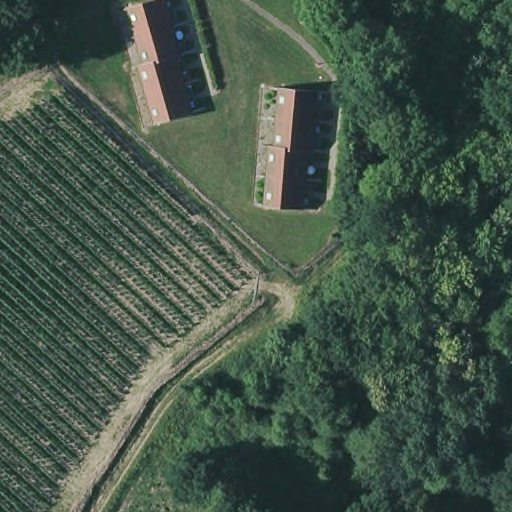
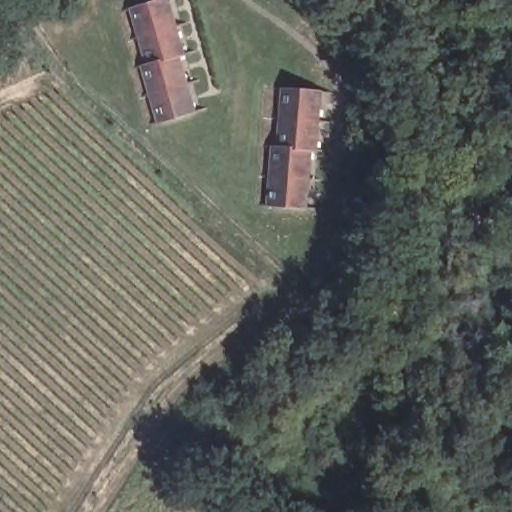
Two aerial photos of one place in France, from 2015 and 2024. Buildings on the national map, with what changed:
unchanged [(135,11),(175,0),(183,29),(143,40),(135,11)]
unchanged [(190,57),(185,58),(150,68),(143,40),(183,29),(190,57)]
unchanged [(146,69),(150,68),(185,58),(192,86),(153,96),(146,69)]
unchanged [(161,124),(153,96),(192,86),(200,114),(161,124)]
unchanged [(273,123),(274,93),(315,94),(314,124),(273,123)]
unchanged [(273,123),(314,124),(313,154),(305,154),(272,153),(273,123)]
unchanged [(305,154),(303,183),(263,181),(264,153),(272,153),(305,154)]
unchanged [(302,210),(262,209),(263,181),(303,183),(302,210)]

